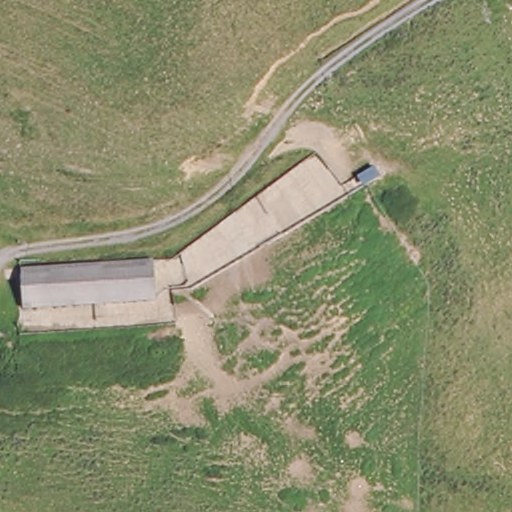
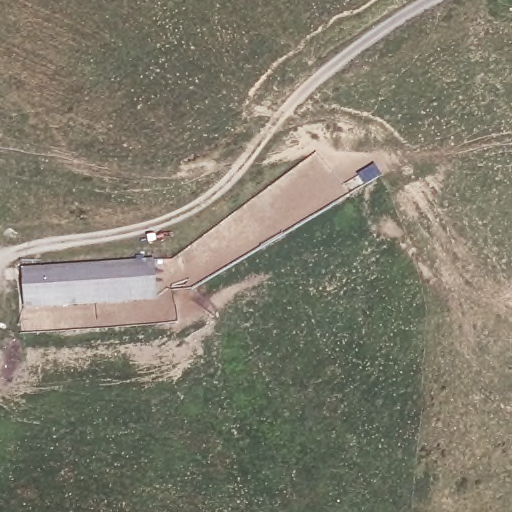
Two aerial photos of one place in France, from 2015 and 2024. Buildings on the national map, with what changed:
unchanged [(16,272),(154,262),(157,302),(22,312),(16,272)]

